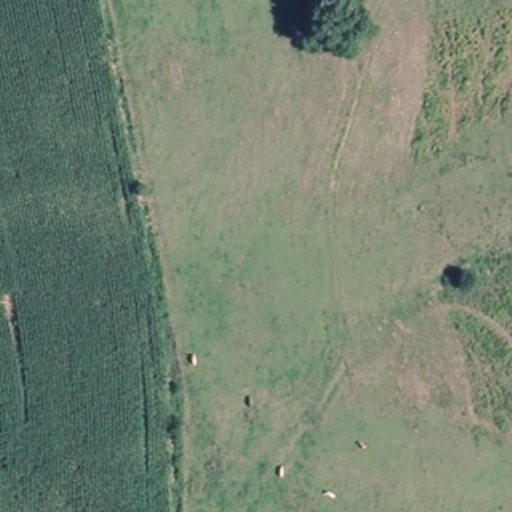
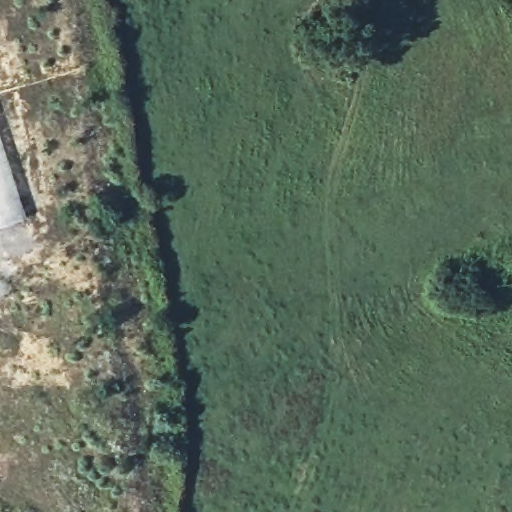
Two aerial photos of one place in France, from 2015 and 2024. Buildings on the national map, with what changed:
new [(0,222),(0,134),(26,213),(0,222)]

